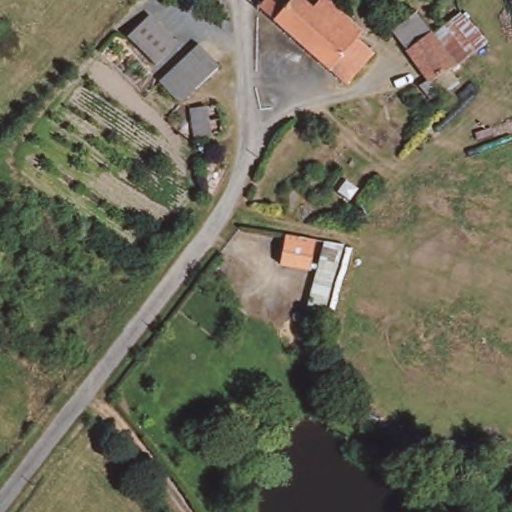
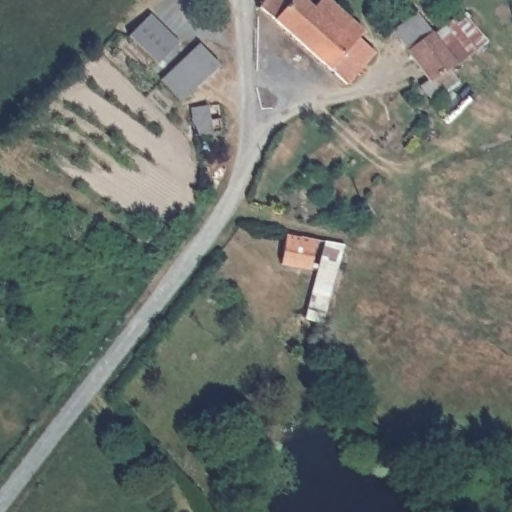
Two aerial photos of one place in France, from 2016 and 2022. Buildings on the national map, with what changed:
unchanged [(314,1),(315,0),(328,0),(361,30),(356,35),(372,50),(343,81),(257,4),(260,0),(313,0),(314,1)]
unchanged [(453,85),(447,91),(440,88),(428,97),(419,85),(428,79),(406,49),(394,34),(394,31),(418,12),(425,21),(431,30),(433,31),(449,20),(474,49),(457,62),(464,71),(455,79),(454,81),(453,85)]
unchanged [(151,15),(177,45),(154,65),(127,35),(151,15)]
unchanged [(197,51),(202,46),(207,51),(215,61),(217,60),(222,66),(182,101),(163,81),(197,51)]
unchanged [(188,126),(186,119),(203,115),(207,144),(191,147),(188,126)]
unchanged [(318,245),(312,272),(279,265),(285,236),(318,245)]
unchanged [(328,329),(307,325),(328,243),(348,245),(328,329)]

